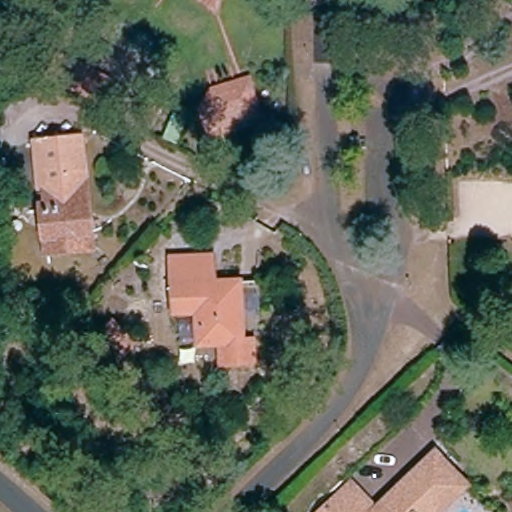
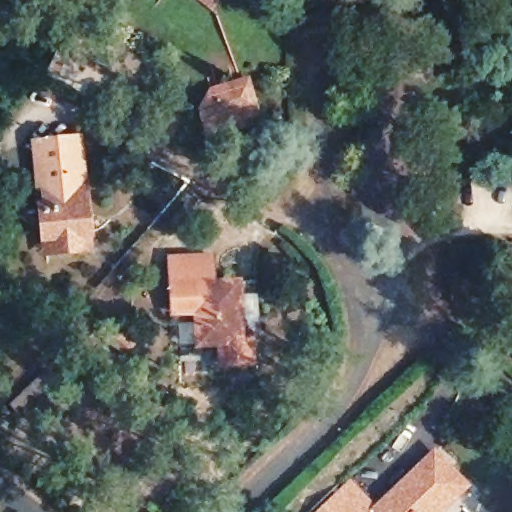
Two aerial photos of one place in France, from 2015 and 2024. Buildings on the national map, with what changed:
unchanged [(217,13),(200,0),(219,0),(217,13)]
unchanged [(262,113),(211,130),(200,99),(212,81),(248,69),(262,113)]
unchanged [(364,116),(365,129),(358,130),(358,117),(364,116)]
unchanged [(97,260),(36,262),(27,142),(83,136),(97,260)]
unchanged [(235,327),(245,327),(246,350),(215,351),(214,329),(194,330),(193,305),(168,306),(166,272),(166,253),(205,251),(206,277),(233,276),(235,327)]
unchanged [(453,512),(317,512),(348,482),(373,504),(432,449),(473,493),(453,512)]

